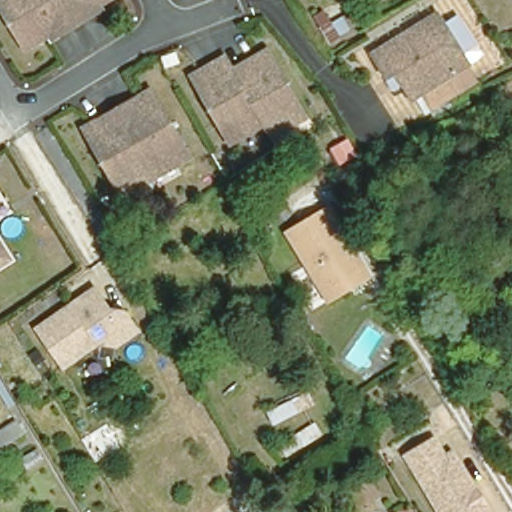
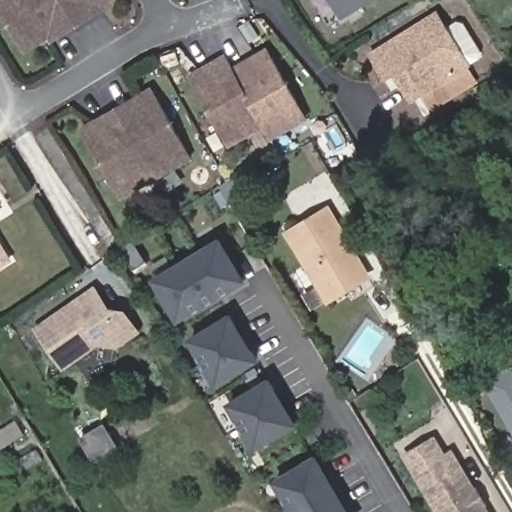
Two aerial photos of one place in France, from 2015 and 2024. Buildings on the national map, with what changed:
unchanged [(91,11),(94,15),(76,26),(57,37),(55,33),(22,52),(0,15),(0,0),(110,0),(91,11)]
new [(341,19),(329,0),(373,0),(341,19)]
unchanged [(435,12),(467,64),(410,100),(400,83),(391,89),(369,53),(435,12)]
unchanged [(247,58),(261,50),(300,118),(285,127),(283,122),(263,134),(256,121),(238,89),(226,69),(241,61),(247,58)]
unchanged [(238,89),(256,121),(236,132),(239,136),(224,145),(184,76),(199,68),(205,65),(219,57),(226,69),(238,89)]
unchanged [(102,117),(116,109),(130,101),(136,98),(150,89),(189,158),(155,178),(120,198),(81,129),(95,121),(102,117)]
unchanged [(226,181),(235,175),(247,194),(230,205),(218,186),(226,181)]
unchanged [(283,226),(323,202),(344,235),(339,238),(360,272),(325,293),(283,226)]
new [(179,323),(151,280),(219,237),(246,280),(179,323)]
unchanged [(1,260),(0,261),(0,258),(1,260)]
unchanged [(33,321),(93,285),(101,297),(102,308),(106,314),(112,310),(125,316),(136,334),(112,347),(96,344),(61,366),(33,321)]
new [(186,338),(231,312),(260,360),(215,386),(186,338)]
new [(512,366),(512,432),(481,380),(512,366)]
demolished [(508,377),(504,379),(505,382),(494,387),(490,378),(505,371),(508,377)]
new [(225,403),(270,377),(299,425),(255,451),(225,403)]
new [(104,424),(108,430),(117,446),(93,460),(79,438),(96,429),(104,424)]
unchanged [(430,431),(439,444),(447,439),(485,512),(437,512),(401,450),(430,431)]
new [(316,454),(351,512),(291,512),(272,480),(316,454)]

